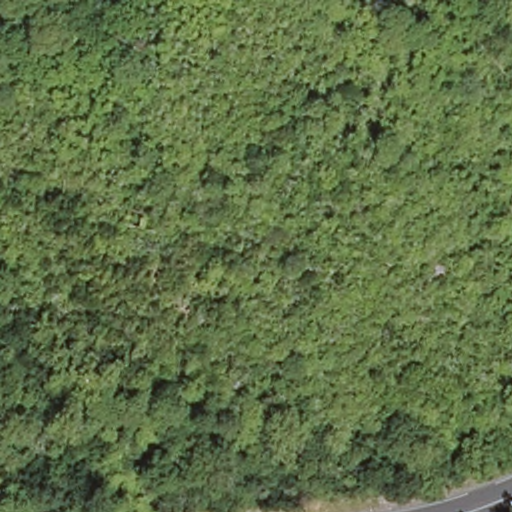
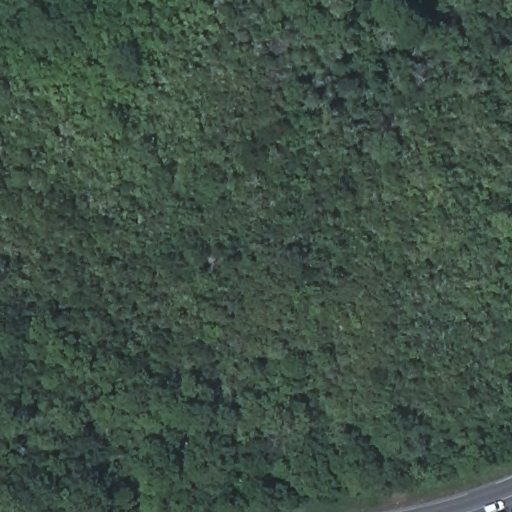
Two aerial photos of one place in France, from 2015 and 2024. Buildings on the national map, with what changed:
unchanged [(132,227),(134,209),(149,211),(147,229),(132,227)]

